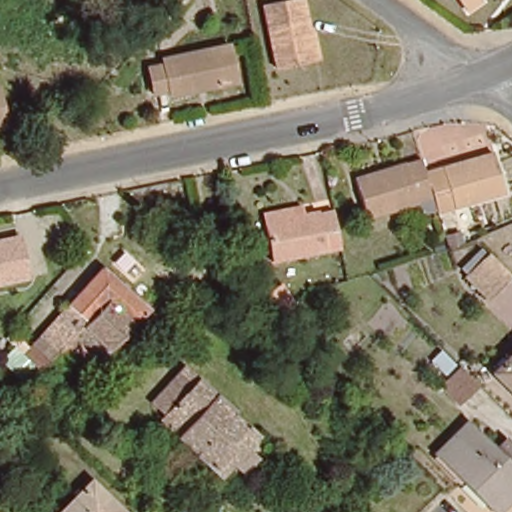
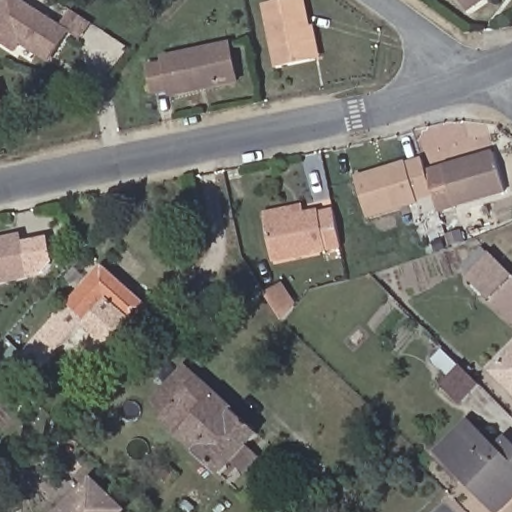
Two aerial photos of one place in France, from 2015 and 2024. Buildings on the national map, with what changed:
new [(71,34),(52,65),(22,45),(16,53),(0,43),(0,7),(4,0),(21,0),(62,26),(72,10),(94,24),(83,41),(71,34)]
unchanged [(307,57),(277,66),(258,6),(277,0),(296,0),(304,29),(310,27),(318,54),(307,57)]
unchanged [(467,0),(475,0),(469,3),(467,0)]
unchanged [(240,78),(174,95),(171,85),(159,87),(155,68),(166,67),(165,58),(232,43),(240,78)]
unchanged [(6,121),(0,123),(0,89),(6,121)]
unchanged [(504,186),(440,208),(438,204),(426,174),(491,150),(504,186)]
unchanged [(426,174),(438,204),(419,212),(417,205),(366,220),(357,190),(353,179),(371,173),(419,157),(426,174)]
unchanged [(334,209),(343,240),(276,255),(266,220),(264,213),(295,205),(297,213),(332,204),(334,209)]
unchanged [(30,280),(0,285),(0,238),(21,234),(30,280)]
unchanged [(492,249),(512,272),(512,276),(491,296),(468,272),(492,249)]
unchanged [(154,305),(132,325),(108,303),(75,336),(40,370),(19,350),(107,261),(154,305)]
unchanged [(286,311),(268,294),(282,284),(297,298),(286,311)]
unchanged [(108,339),(92,352),(75,336),(108,303),(132,325),(112,344),(108,339)]
unchanged [(512,350),(512,398),(487,371),(512,350)]
unchanged [(152,395),(187,361),(258,428),(216,472),(187,446),(192,443),(157,411),(162,406),(152,395)]
unchanged [(435,379),(454,363),(472,383),(453,399),(435,379)]
unchanged [(430,447),(458,420),(496,461),(507,450),(512,455),(512,488),(488,509),(460,480),(430,447)]
unchanged [(117,512),(62,512),(94,481),(122,508),(117,512)]

